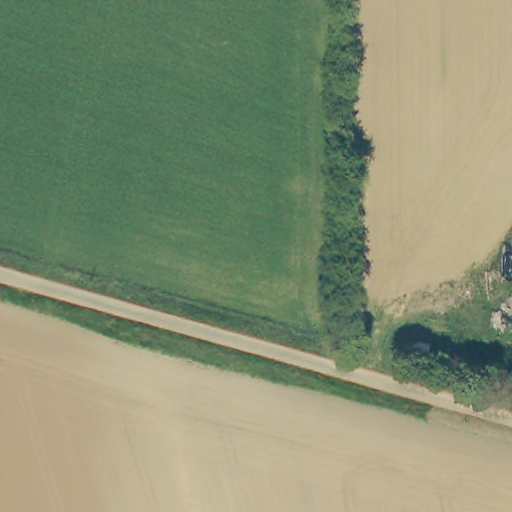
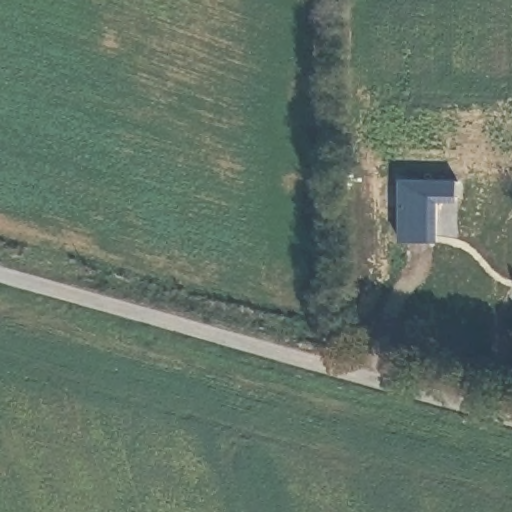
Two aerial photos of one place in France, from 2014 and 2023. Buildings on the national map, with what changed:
new [(400,180),(456,180),(456,202),(438,202),(437,242),(400,242),(400,180)]

